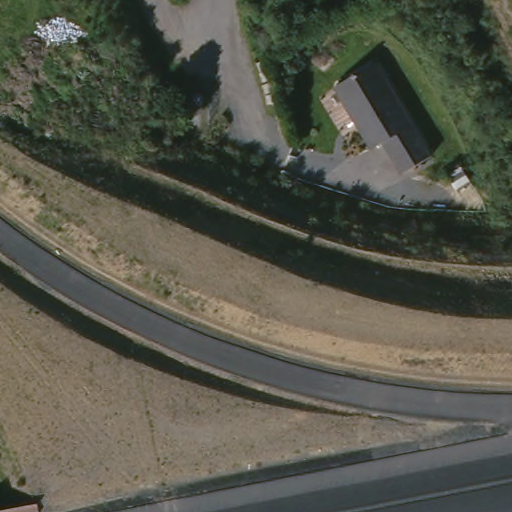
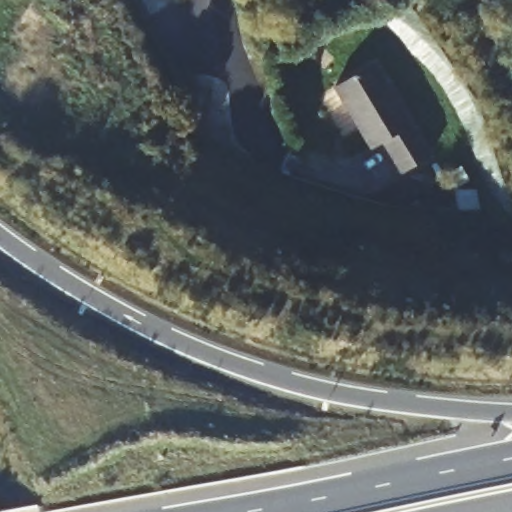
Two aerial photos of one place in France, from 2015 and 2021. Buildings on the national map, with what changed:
unchanged [(383,60),(439,151),(408,168),(391,139),(380,144),(342,84),(383,60)]

